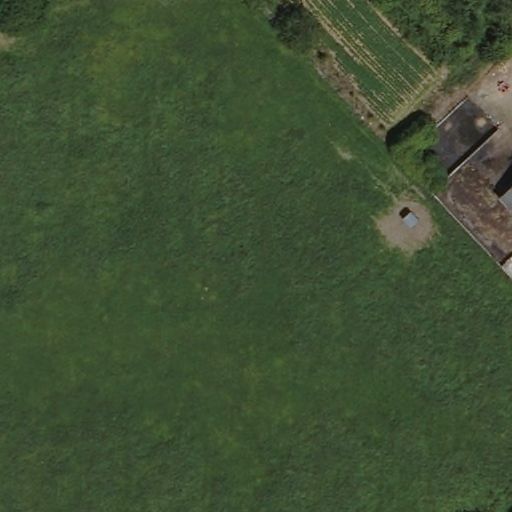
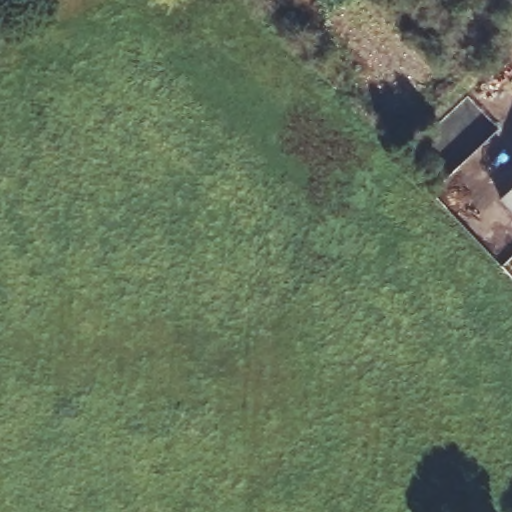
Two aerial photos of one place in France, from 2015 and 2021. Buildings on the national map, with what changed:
unchanged [(500,199),(512,188),(512,211),(500,199)]

